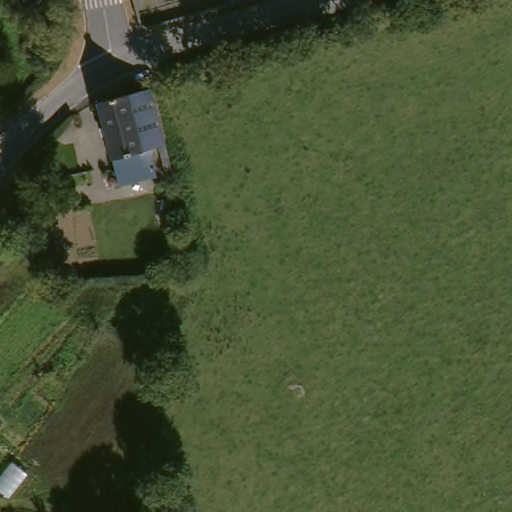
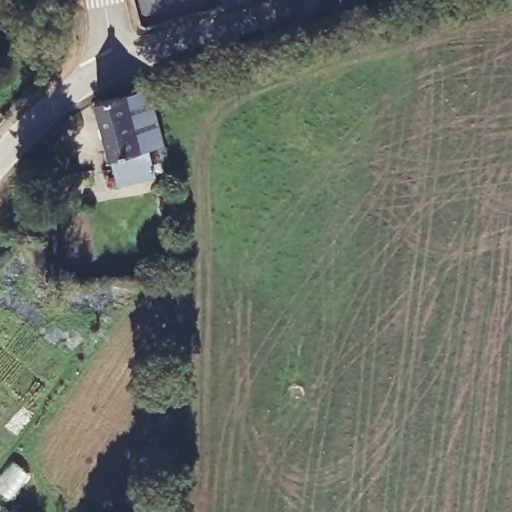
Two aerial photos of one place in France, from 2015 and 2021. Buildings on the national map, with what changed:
unchanged [(229,21),(239,19),(254,16),(256,26),(241,30),(233,32),(229,21)]
unchanged [(94,107),(149,92),(165,156),(144,162),(151,187),(119,195),(111,166),(94,107)]

